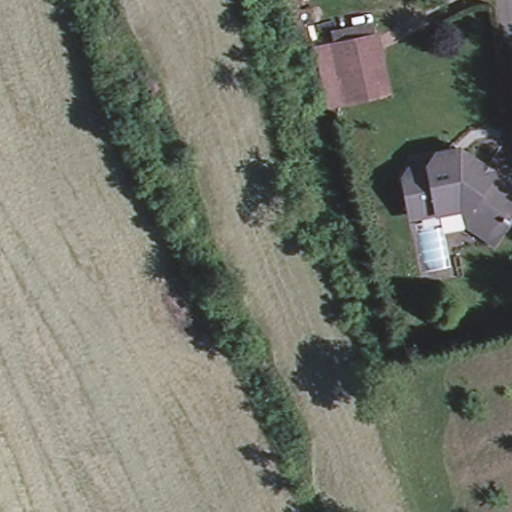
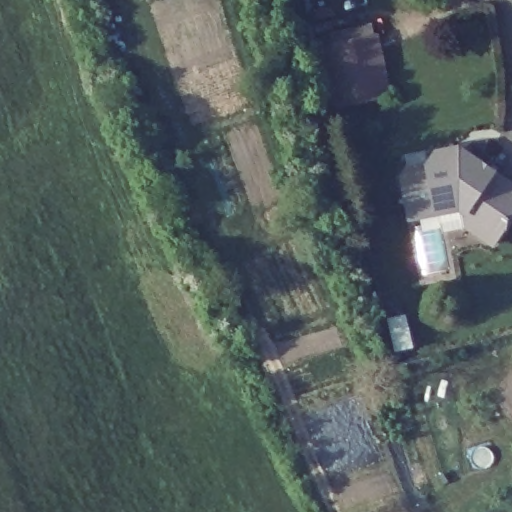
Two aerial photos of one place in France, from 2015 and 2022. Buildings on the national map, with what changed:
unchanged [(327,34),(369,24),(372,34),(387,93),(345,104),(327,108),(312,49),(330,44),(327,34)]
unchanged [(405,175),(410,166),(430,163),(437,150),(449,149),(454,141),(474,154),(512,179),(512,217),(497,240),(471,224),(468,209),(462,205),(418,214),(413,215),(408,191),(405,175)]

